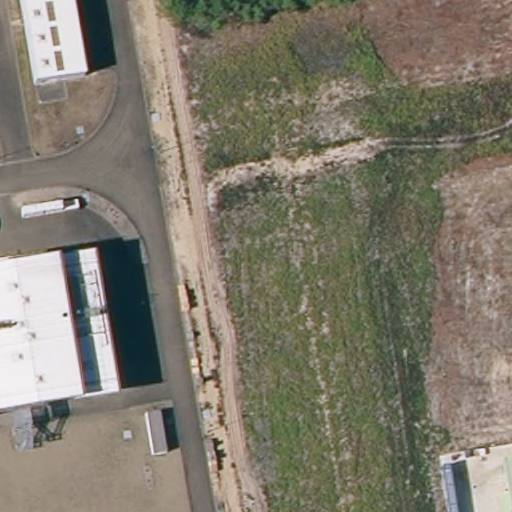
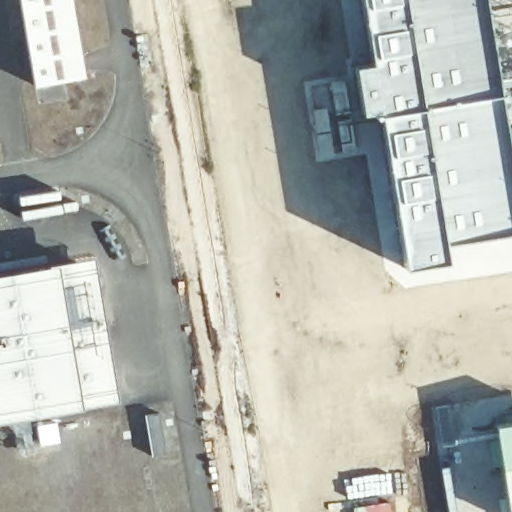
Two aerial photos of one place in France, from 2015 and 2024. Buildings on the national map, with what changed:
unchanged [(86,78),(36,86),(21,0),(72,0),(86,78)]
new [(512,170),(512,231),(443,240),(446,258),(405,263),(377,109),(362,110),(355,64),(371,61),(361,0),(485,0),(512,170)]
unchanged [(23,214),(22,208),(63,201),(64,208),(23,214)]
unchanged [(0,413),(0,274),(90,259),(112,394),(0,413)]
new [(448,334),(508,323),(512,342),(512,351),(454,361),(448,334)]
new [(512,421),(512,512),(509,512),(496,424),(512,421)]
new [(392,512),(331,512),(331,510),(391,501),(392,512)]

